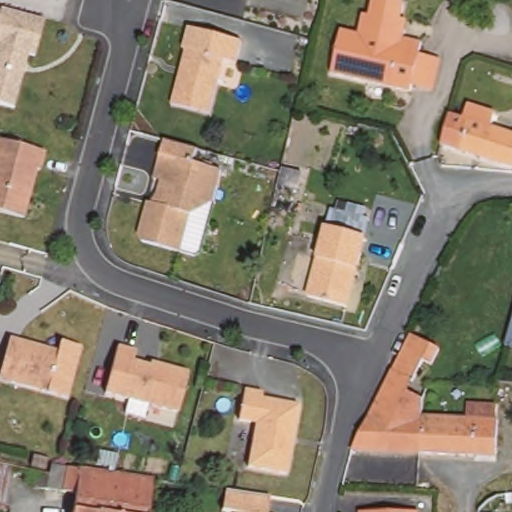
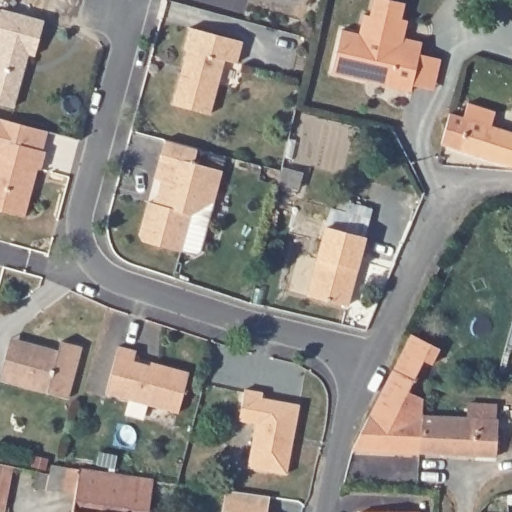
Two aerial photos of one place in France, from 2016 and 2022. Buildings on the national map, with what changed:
unchanged [(361,16),(368,17),(372,0),(378,0),(403,7),(400,22),(405,23),(402,38),(400,44),(366,36),(356,34),(361,16)]
unchanged [(34,51),(28,49),(14,102),(0,98),(0,7),(1,5),(44,16),(34,51)]
unchanged [(243,42),(237,64),(225,60),(211,115),(173,105),(187,51),(184,50),(190,28),(243,42)]
unchanged [(341,30),(356,34),(400,44),(402,38),(422,43),(410,91),(331,73),(341,30)]
unchanged [(467,103),(495,111),(491,125),(512,132),(512,167),(440,144),(450,113),(463,117),(467,103)]
unchanged [(24,213),(0,206),(0,135),(46,147),(41,166),(37,165),(29,195),(24,213)]
unchanged [(191,210),(182,247),(143,236),(140,230),(148,197),(156,199),(157,191),(162,176),(155,174),(160,154),(165,135),(197,144),(194,158),(222,166),(216,187),(214,197),(191,210)]
unchanged [(302,173),(296,197),(280,192),(286,169),(302,173)]
unchanged [(346,307),(307,297),(327,227),(365,237),(357,270),(354,279),(346,307)]
unchanged [(512,320),(512,350),(503,348),(512,320)]
unchanged [(411,335),(440,350),(432,365),(423,360),(405,396),(386,385),(411,335)]
unchanged [(6,375),(9,349),(20,341),(60,346),(61,336),(82,339),(76,392),(17,384),(5,382),(6,375)]
unchanged [(177,413),(105,393),(117,347),(136,352),(133,362),(157,368),(158,365),(189,373),(177,413)]
unchanged [(267,387),(266,392),(303,400),(288,469),(250,460),(260,417),(242,414),(249,383),(267,387)]
unchanged [(385,417),(422,419),(422,429),(420,453),(352,449),(376,403),(388,407),(385,417)]
unchanged [(467,404),(496,405),(495,420),(497,420),(496,453),(474,452),(474,456),(420,453),(422,429),(422,419),(422,415),(467,418),(467,404)]
unchanged [(474,456),(496,453),(496,457),(474,456)]
unchanged [(12,466),(4,512),(0,512),(0,464),(12,466)]
unchanged [(34,488),(37,472),(42,473),(49,474),(51,465),(65,467),(80,468),(98,471),(154,479),(148,512),(72,512),(75,493),(34,488)]
unchanged [(226,490),(270,497),(267,512),(229,512),(222,511),(226,490)]

